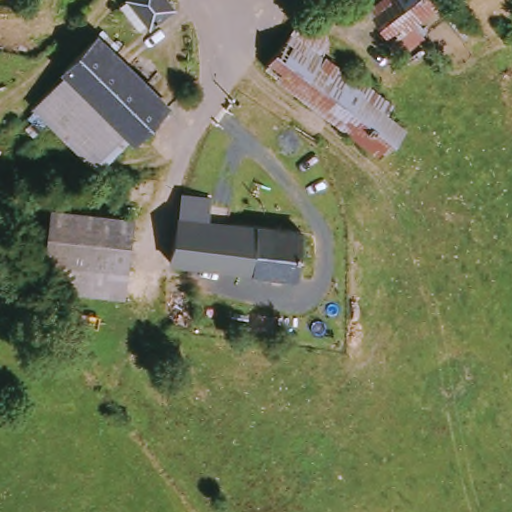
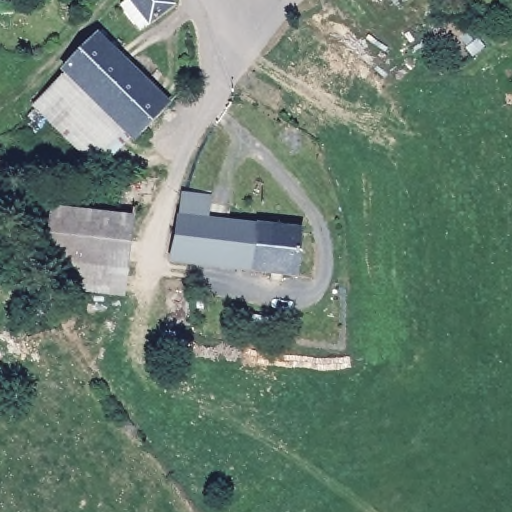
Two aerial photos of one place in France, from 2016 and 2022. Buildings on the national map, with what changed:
unchanged [(131,6),(137,1),(137,0),(176,0),(182,7),(160,26),(158,24),(150,31),(131,6)]
unchanged [(419,33),(427,46),(405,60),(375,14),(394,0),(393,0),(433,0),(444,17),(419,33)]
demolished [(62,46),(47,30),(55,23),(62,15),(77,30),(62,46)]
demolished [(394,109),(417,126),(388,163),(272,70),(299,37),(309,25),(335,43),(324,57),(341,70),(394,109)]
unchanged [(107,39),(154,86),(165,75),(189,99),(142,145),(139,142),(72,74),(107,39)]
unchanged [(139,142),(108,172),(40,106),(72,74),(139,142)]
unchanged [(305,281),(180,268),(189,198),(217,201),(215,225),(310,233),(305,281)]
unchanged [(79,285),(70,296),(49,293),(56,213),(136,219),(129,299),(95,298),(79,285)]

